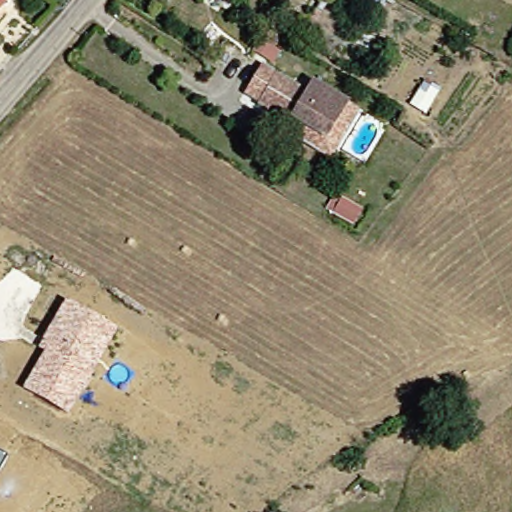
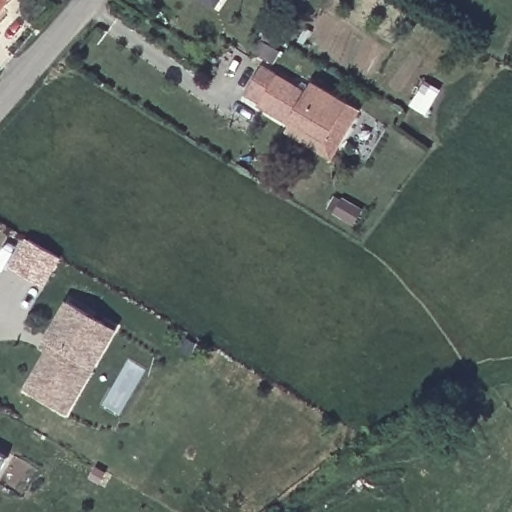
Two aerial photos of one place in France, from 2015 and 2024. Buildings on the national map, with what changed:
unchanged [(368,0),(390,0),(385,10),(368,0)]
unchanged [(248,109),(252,100),(237,94),(251,70),(295,95),(302,85),(335,102),(311,140),(281,125),(248,109)]
unchanged [(353,112),(322,161),(275,136),(281,125),(311,140),(335,102),(353,112)]
new [(27,237),(62,258),(46,287),(11,267),(27,237)]
unchanged [(94,374),(68,415),(24,388),(47,352),(40,348),(67,300),(117,330),(94,374)]
unchanged [(0,471),(0,453),(7,457),(0,471)]

